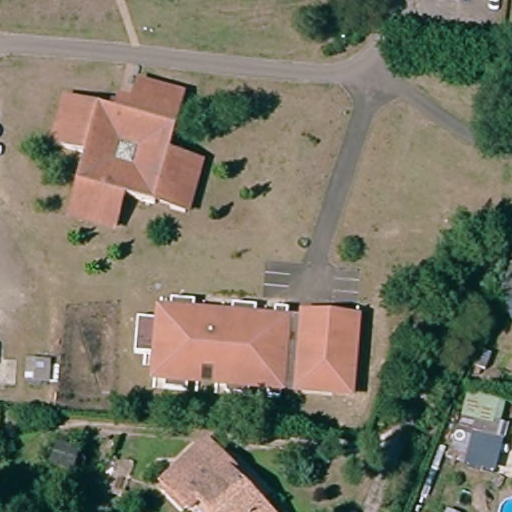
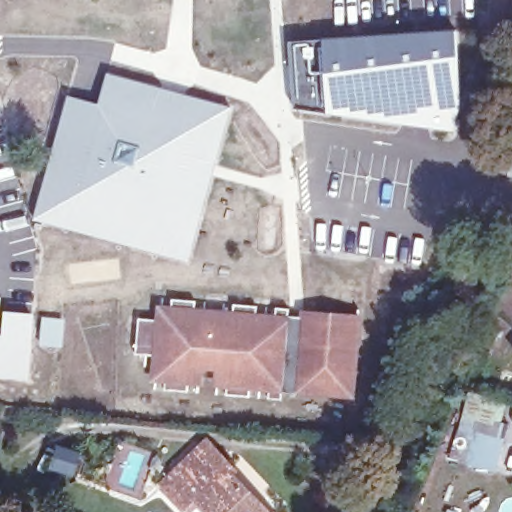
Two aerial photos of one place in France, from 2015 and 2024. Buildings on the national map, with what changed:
new [(454,30),(460,106),(452,131),(293,109),(289,42),(454,30)]
new [(231,108),(188,263),(31,221),(67,96),(98,105),(108,73),(231,108)]
demolished [(137,182),(126,179),(121,195),(113,226),(64,211),(81,152),(52,142),(67,92),(116,107),(112,124),(122,127),(127,111),(136,80),(184,95),(169,151),(199,160),(184,215),(133,199),(137,182)]
new [(506,175),(511,145),(512,145),(512,175),(506,175)]
unchanged [(500,296),(512,266),(512,310),(500,296)]
unchanged [(282,400),(269,398),(270,387),(251,386),(250,397),(227,396),(227,385),(217,383),(219,355),(201,354),(199,382),(189,382),(188,392),(165,391),(166,380),(155,379),(157,357),(135,356),(138,320),(159,322),(160,311),(170,312),(171,301),(195,302),(194,313),(232,316),(233,306),(256,307),(256,318),(275,320),(275,308),(288,310),(288,317),(303,318),(303,311),(358,315),(358,322),(352,393),(334,392),(298,390),(283,388),(282,400)]
new [(0,336),(1,336),(4,311),(34,313),(27,381),(0,378),(0,336)]
unchanged [(489,357),(484,370),(477,367),(481,355),(489,357)]
unchanged [(465,412),(505,423),(494,472),(450,462),(465,412)]
unchanged [(184,511),(160,487),(168,477),(199,447),(223,471),(266,512),(203,512),(197,507),(192,502),(184,511)]

